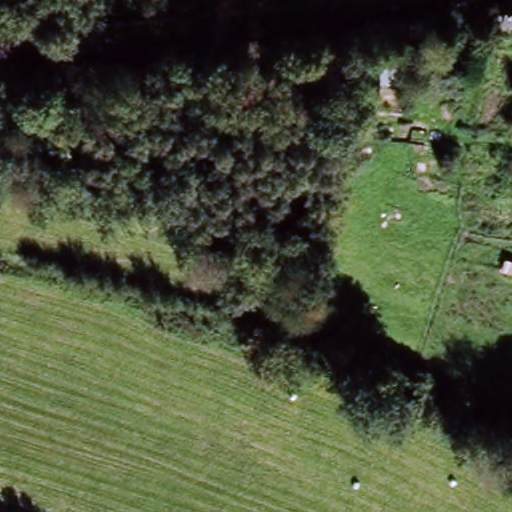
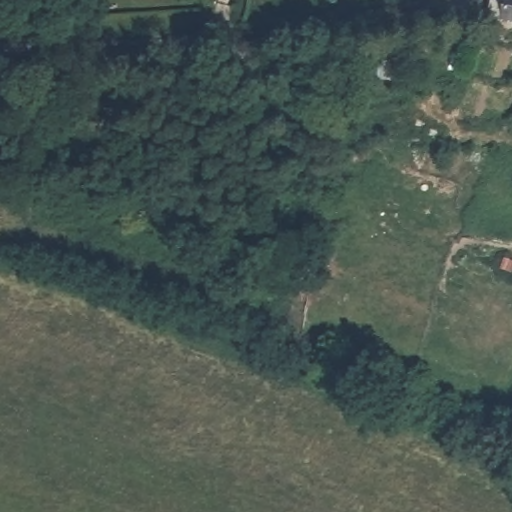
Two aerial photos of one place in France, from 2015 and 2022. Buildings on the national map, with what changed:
unchanged [(512,21),(499,20),(501,0),(512,0),(512,21)]

